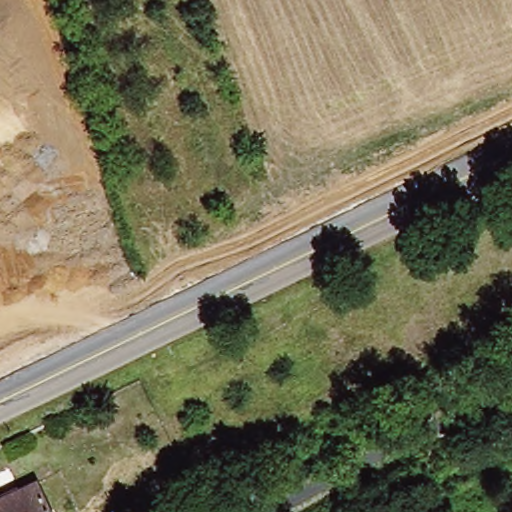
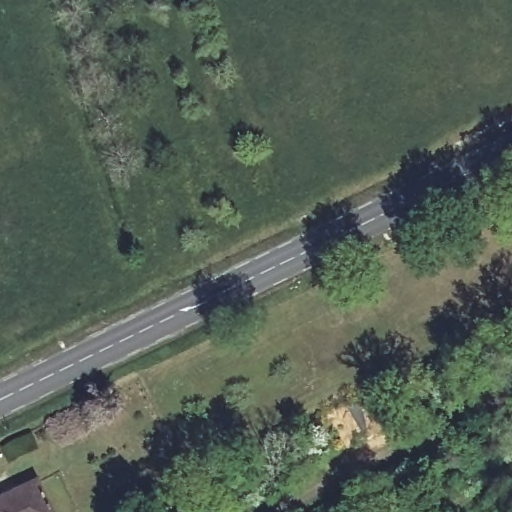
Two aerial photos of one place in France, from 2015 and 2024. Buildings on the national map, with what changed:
unchanged [(38,490),(48,512),(0,512),(0,506),(38,490)]

